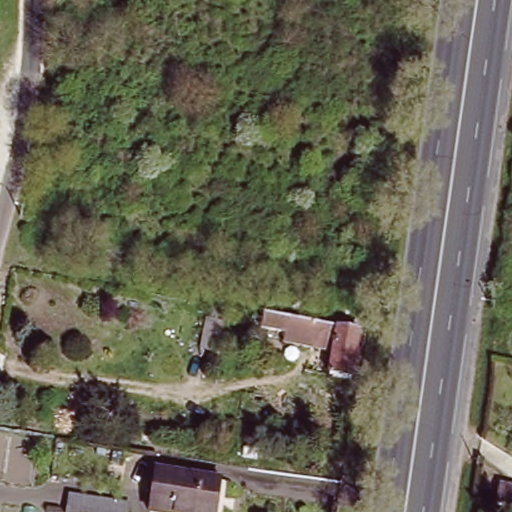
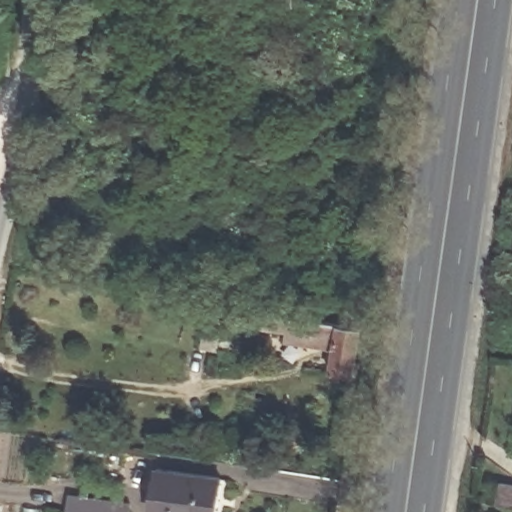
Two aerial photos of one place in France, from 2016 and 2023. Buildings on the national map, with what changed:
unchanged [(357,386),(336,382),(340,358),(292,351),(294,341),(271,338),(274,321),(365,336),(357,386)]
unchanged [(221,512),(176,512),(158,509),(164,470),(225,478),(221,512)]
unchanged [(506,488),(512,489),(512,506),(504,504),(506,488)]
unchanged [(150,510),(149,512),(82,512),(84,500),(150,510)]

